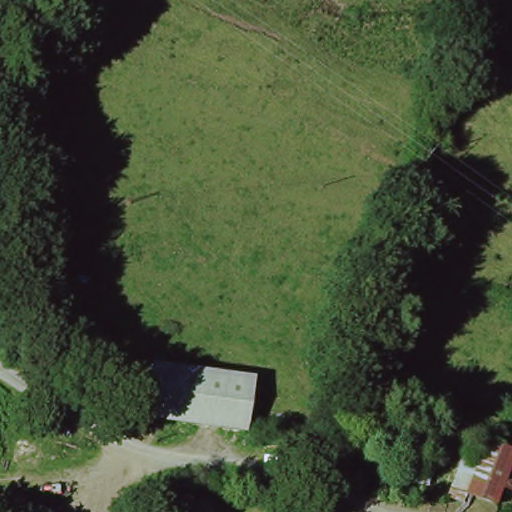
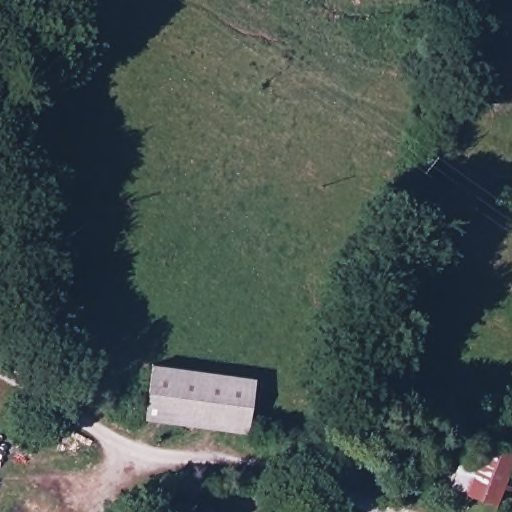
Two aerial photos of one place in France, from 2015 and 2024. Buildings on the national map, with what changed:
unchanged [(143,415),(149,361),(255,374),(249,430),(143,415)]
unchanged [(512,450),(512,491),(501,488),(495,504),(461,492),(473,436),(512,450)]
unchanged [(217,496),(220,512),(171,512),(169,500),(217,496)]

